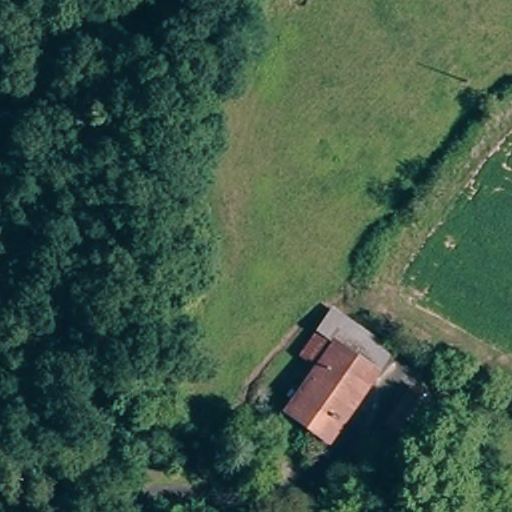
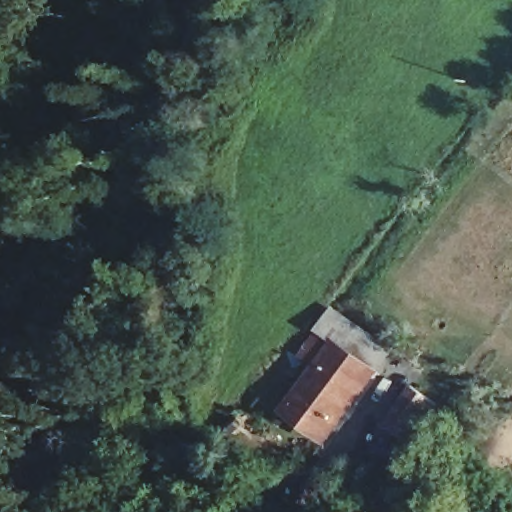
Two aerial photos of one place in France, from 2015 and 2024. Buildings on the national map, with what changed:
unchanged [(395,348),(332,443),(283,410),(315,365),(300,355),(333,306),(395,348)]
unchanged [(412,438),(392,425),(417,388),(437,401),(412,438)]

